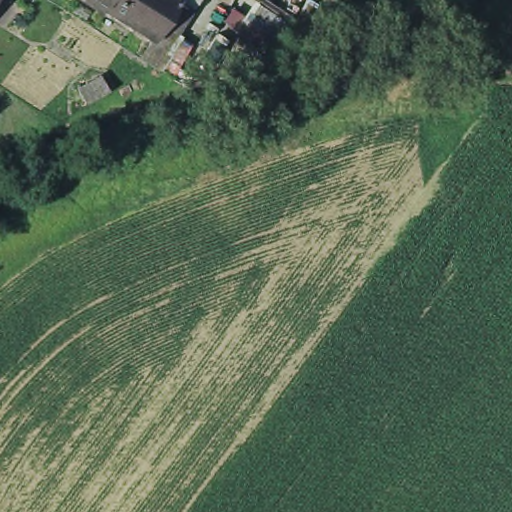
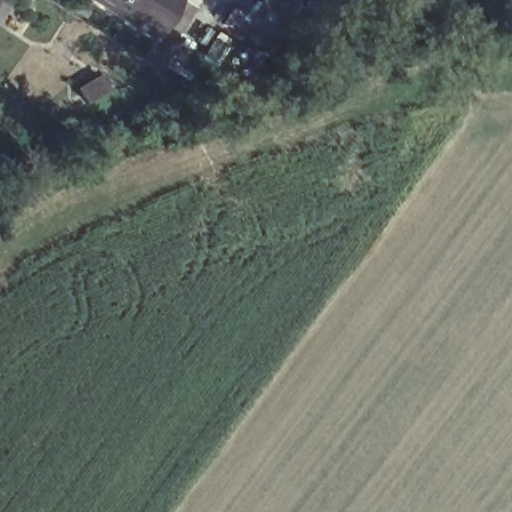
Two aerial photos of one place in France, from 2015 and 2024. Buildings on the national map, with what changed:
unchanged [(120,24),(79,0),(134,0),(120,24)]
unchanged [(175,1),(182,5),(156,46),(120,24),(134,0),(176,0),(175,1)]
unchanged [(107,75),(115,86),(90,101),(82,89),(107,75)]

